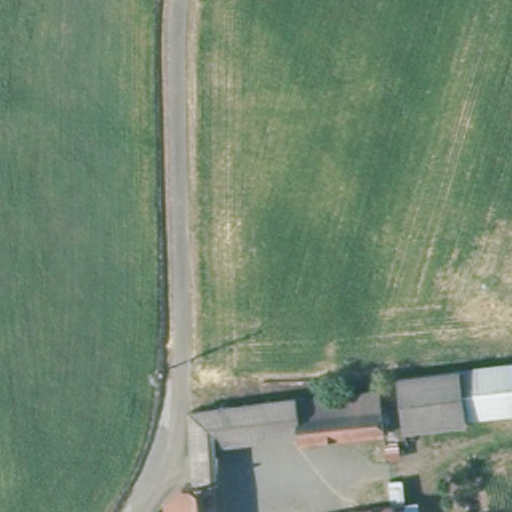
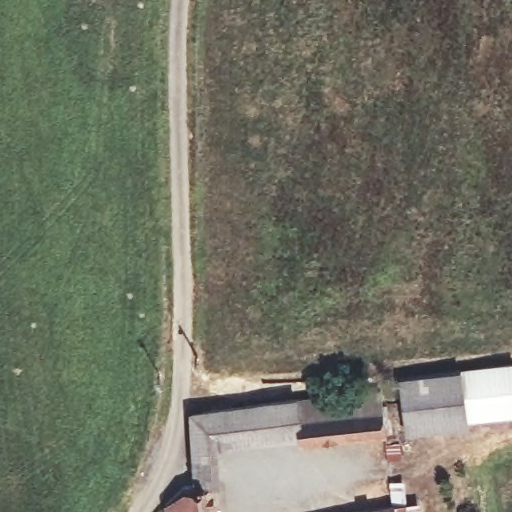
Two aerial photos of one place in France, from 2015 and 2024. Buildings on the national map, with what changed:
unchanged [(512,366),(512,394),(465,400),(462,370),(512,366)]
unchanged [(467,418),(468,423),(403,428),(400,392),(399,376),(462,370),(465,400),(467,418)]
unchanged [(182,483),(190,482),(191,404),(383,389),(386,429),(300,434),(300,431),(216,437),(219,476),(216,477),(218,512),(163,512),(162,505),(182,483)]
unchanged [(512,394),(512,415),(467,418),(465,400),(512,394)]
unchanged [(355,512),(395,505),(395,512),(355,512)]

